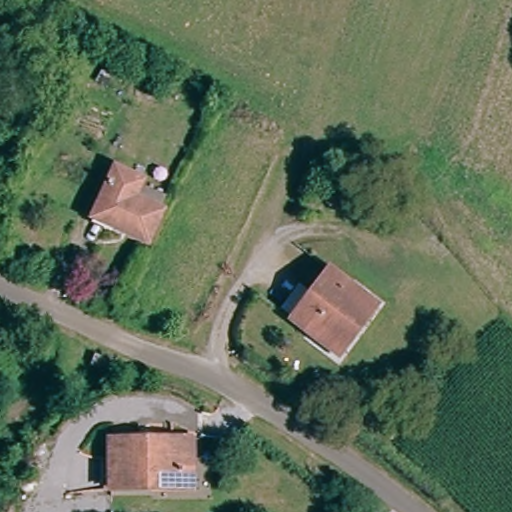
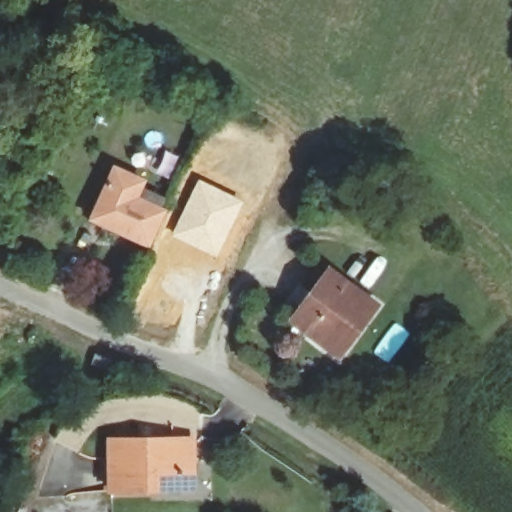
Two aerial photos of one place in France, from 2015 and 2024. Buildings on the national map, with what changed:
unchanged [(94,220),(98,210),(118,163),(147,177),(140,195),(166,208),(150,241),(118,225),(116,230),(94,220)]
new [(197,179),(243,201),(216,257),(171,235),(197,179)]
unchanged [(317,332),(298,321),(329,265),(377,295),(349,342),(344,350),(317,332)]
unchanged [(101,361),(106,351),(122,357),(118,367),(101,361)]
unchanged [(176,446),(149,449),(147,438),(192,435),(199,488),(182,489),(176,446)]
unchanged [(123,495),(115,442),(147,438),(149,449),(176,446),(182,489),(123,495)]

